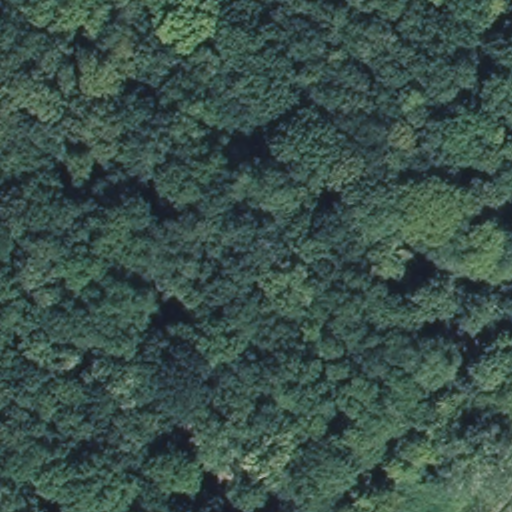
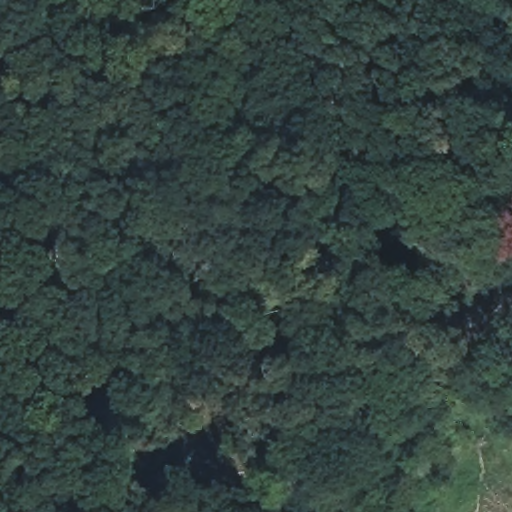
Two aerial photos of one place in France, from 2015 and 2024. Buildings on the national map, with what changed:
unchanged [(453,316),(464,327),(454,336),(443,325),(453,316)]

